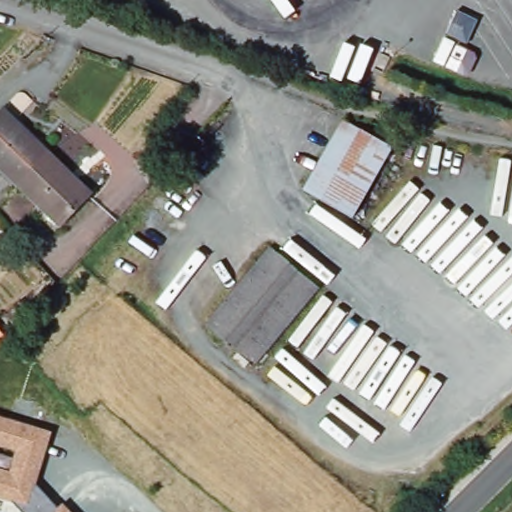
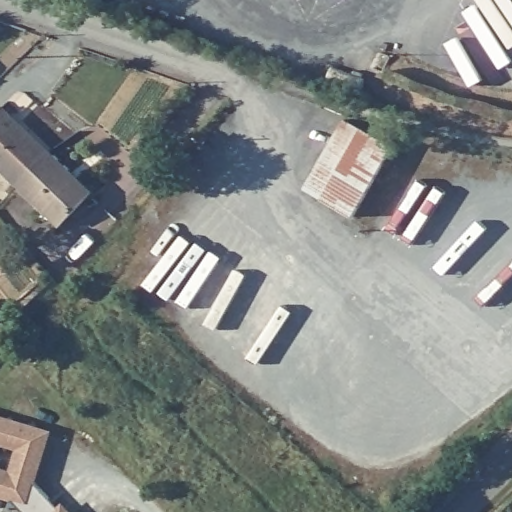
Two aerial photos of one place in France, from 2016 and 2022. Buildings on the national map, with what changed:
unchanged [(2,113),(20,130),(23,126),(33,136),(0,167),(0,116),(2,113)]
unchanged [(392,147),(352,215),(304,190),(343,121),(392,147)]
unchanged [(53,155),(20,189),(0,170),(0,167),(33,136),(53,155)]
unchanged [(75,176),(94,195),(92,197),(62,229),(20,189),(53,155),(75,176)]
unchanged [(316,288),(251,363),(210,326),(275,253),(316,288)]
unchanged [(50,430),(34,483),(57,509),(62,505),(70,512),(22,512),(12,501),(0,498),(0,468),(11,471),(15,450),(0,447),(0,415),(50,430)]

